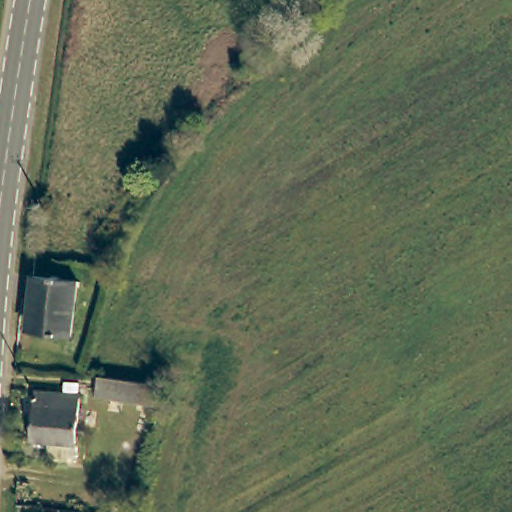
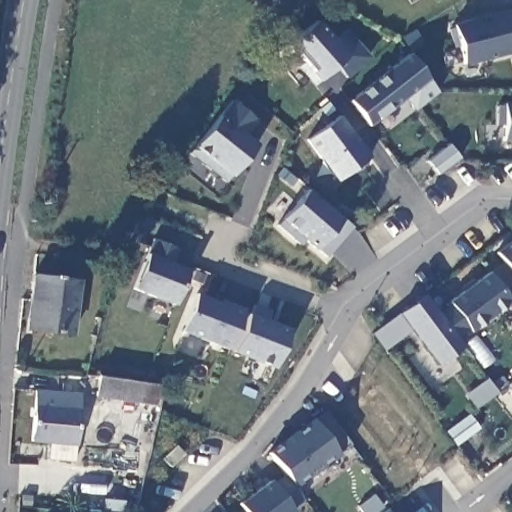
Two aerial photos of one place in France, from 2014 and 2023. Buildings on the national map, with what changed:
unchanged [(507,11),(512,30),(512,55),(463,66),(454,24),(507,11)]
new [(317,20),(333,40),(346,29),(371,59),(347,80),(337,68),(318,83),(288,44),(317,20)]
new [(413,111),(404,100),(372,126),(352,100),(409,52),(438,90),(413,111)]
new [(194,148),(218,114),(230,100),(258,121),(245,137),(257,145),(231,176),(225,183),(188,154),(194,148)]
new [(512,104),(512,139),(503,139),(504,104),(512,104)]
new [(339,117),(369,159),(337,182),(307,139),(339,117)]
new [(352,229),(329,259),(282,221),(307,190),(352,229)]
new [(151,239),(179,249),(174,263),(189,269),(175,304),(134,289),(146,254),(151,239)]
new [(512,242),(512,275),(496,254),(512,242)]
new [(512,303),(472,333),(469,329),(457,339),(463,348),(436,366),(412,333),(384,351),(372,333),(399,314),(424,295),(439,315),(451,306),(447,303),(489,273),(512,303)]
unchanged [(34,303),(29,302),(32,277),(76,282),(69,335),(30,330),(34,303)]
new [(244,312),(229,349),(182,331),(195,294),(244,312)]
new [(253,303),(272,311),(268,320),(292,330),(274,368),(234,352),(248,314),(253,303)]
unchanged [(154,406),(94,397),(99,377),(159,386),(154,406)]
new [(512,382),(512,391),(508,386),(512,382)]
unchanged [(34,390),(79,394),(73,462),(45,460),(48,442),(29,440),(34,390)]
new [(270,481),(273,486),(285,477),(269,453),(312,422),(324,412),(349,446),(338,454),(339,457),(330,463),(327,459),(320,464),(323,468),(307,481),(304,478),(298,482),(300,484),(295,489),(305,501),(292,510),(293,512),(244,512),(238,504),(270,481)]
new [(387,510),(389,512),(384,512),(387,510)]

